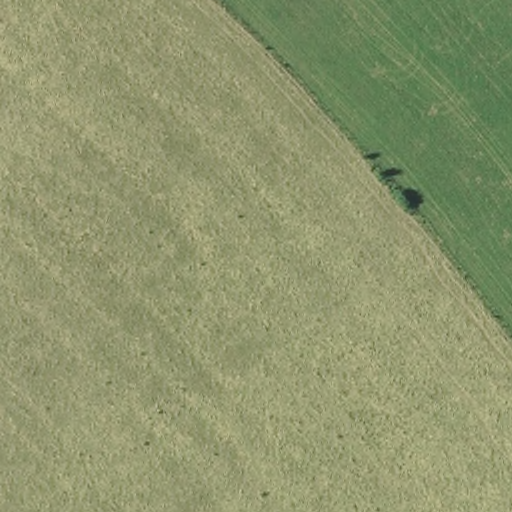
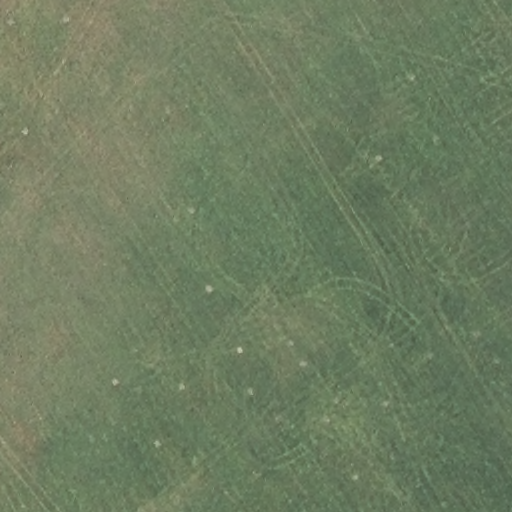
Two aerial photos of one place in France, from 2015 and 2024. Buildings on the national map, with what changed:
[]

